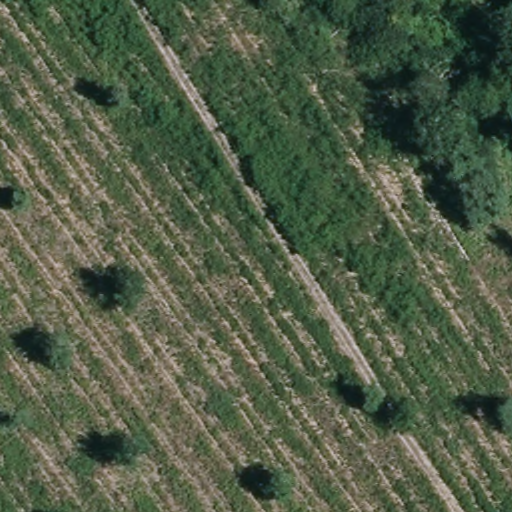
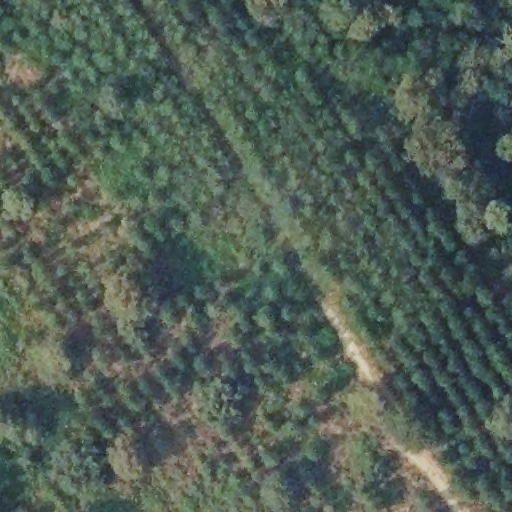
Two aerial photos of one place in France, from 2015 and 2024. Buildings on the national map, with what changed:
[]

